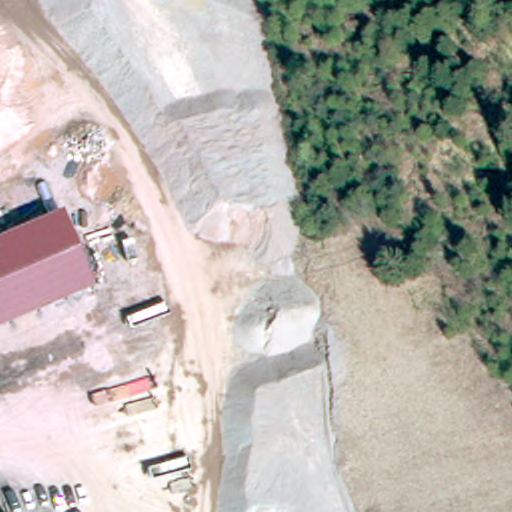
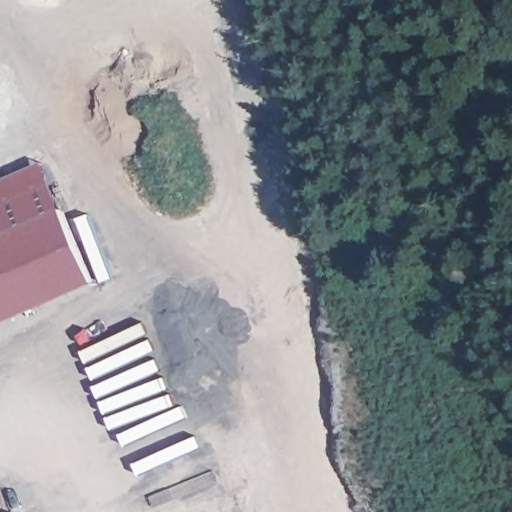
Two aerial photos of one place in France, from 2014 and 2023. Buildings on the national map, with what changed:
new [(0,236),(0,181),(44,162),(63,209),(0,236)]
unchanged [(63,209),(96,284),(0,326),(0,236),(63,209)]
unchanged [(11,512),(8,512),(11,511),(11,512)]

